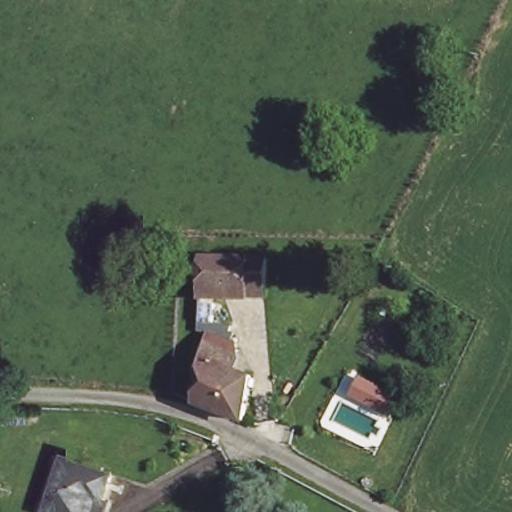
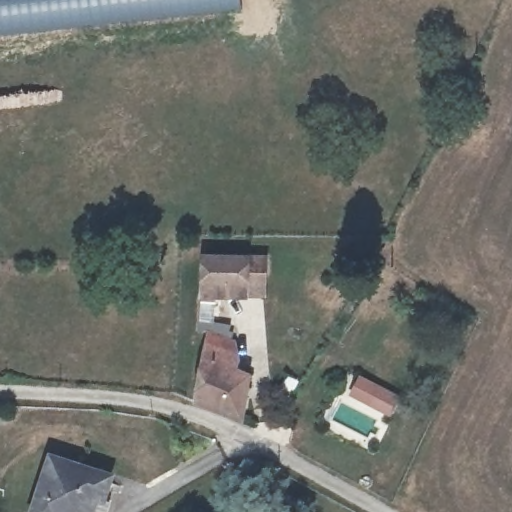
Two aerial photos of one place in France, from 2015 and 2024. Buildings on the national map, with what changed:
new [(241,10),(180,18),(0,37),(0,0),(239,0),(241,10)]
unchanged [(210,297),(210,287),(211,258),(273,258),(273,287),(257,287),(256,298),(210,297)]
unchanged [(198,407),(211,337),(199,334),(201,324),(233,331),(233,337),(237,338),(233,353),(238,354),(232,375),(251,382),(245,426),(198,407)]
unchanged [(116,477),(109,500),(105,512),(40,512),(58,458),(116,477)]

